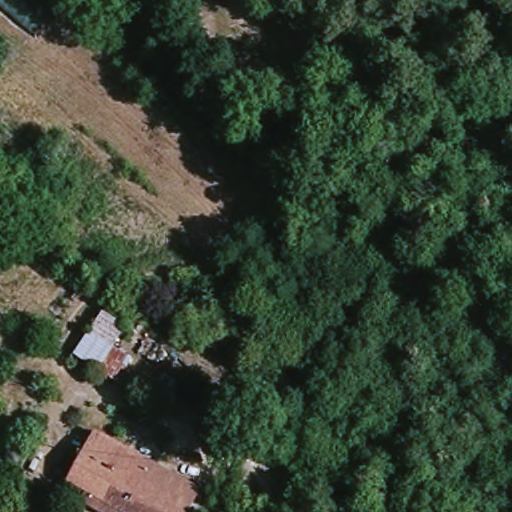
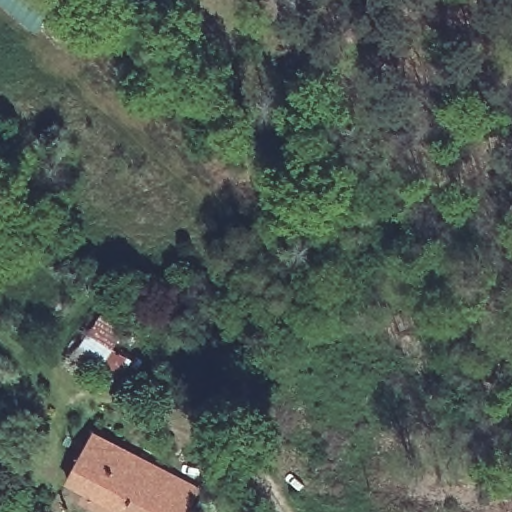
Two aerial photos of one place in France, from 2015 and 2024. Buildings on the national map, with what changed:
unchanged [(124,328),(97,371),(74,356),(102,313),(124,328)]
unchanged [(187,512),(116,512),(67,485),(97,431),(201,487),(187,512)]

